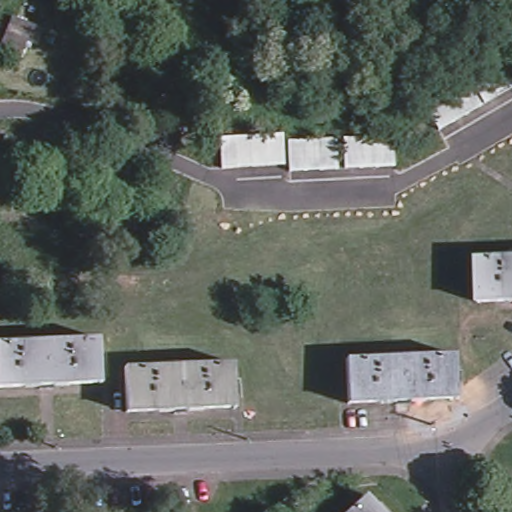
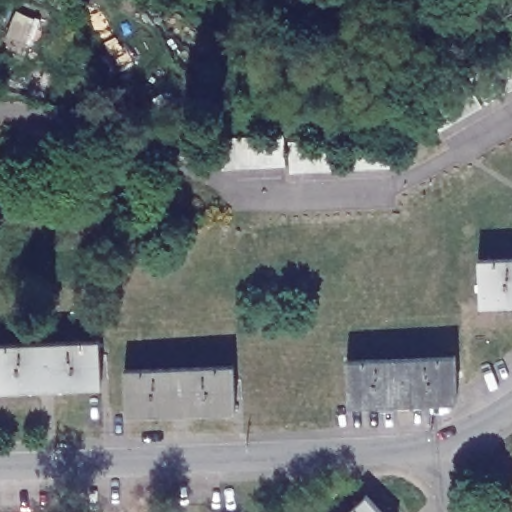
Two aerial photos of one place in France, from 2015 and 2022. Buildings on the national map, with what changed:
unchanged [(511,52),(512,54),(512,86),(487,101),(472,76),(511,52)]
unchanged [(467,79),(482,105),(441,129),(426,103),(467,79)]
unchanged [(273,134),(275,164),(211,167),(211,137),(273,134)]
unchanged [(384,135),(385,165),(336,167),(336,137),(384,135)]
unchanged [(327,138),(328,167),(280,171),(279,141),(327,138)]
unchanged [(482,257),(512,256),(512,301),(483,302),(482,257)]
unchanged [(101,382),(0,385),(0,342),(99,337),(101,382)]
unchanged [(348,360),(459,356),(461,399),(349,403),(348,360)]
unchanged [(123,372),(232,367),(233,412),(123,415),(123,372)]
unchanged [(348,512),(371,492),(388,512),(348,512)]

